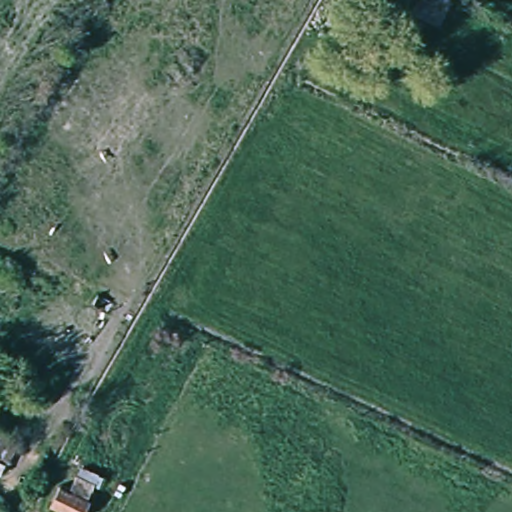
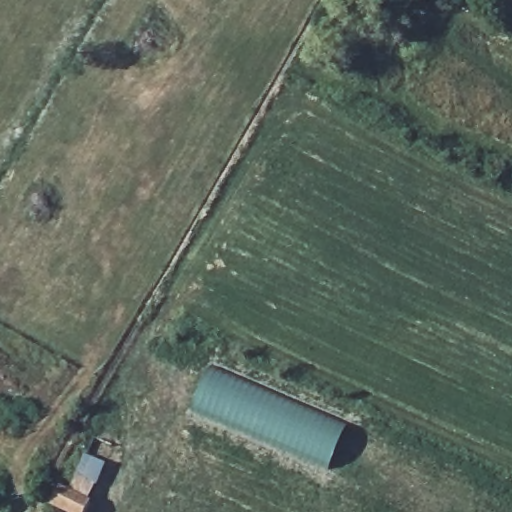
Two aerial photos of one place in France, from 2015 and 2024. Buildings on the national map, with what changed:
new [(192,413),(213,369),(349,428),(330,474),(192,413)]
demolished [(10,463),(3,481),(0,480),(0,428),(35,445),(23,471),(10,463)]
unchanged [(58,512),(50,508),(60,489),(95,506),(91,512),(58,512)]

